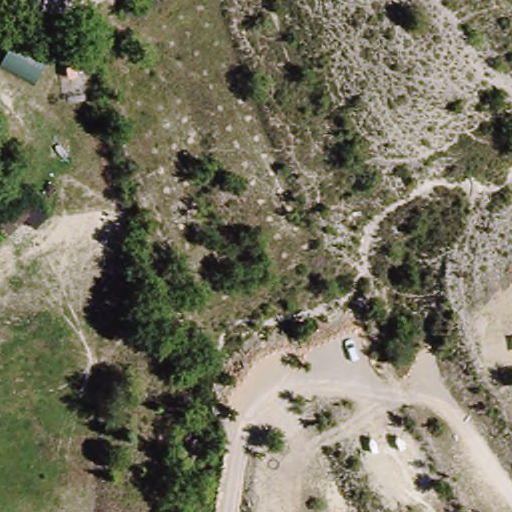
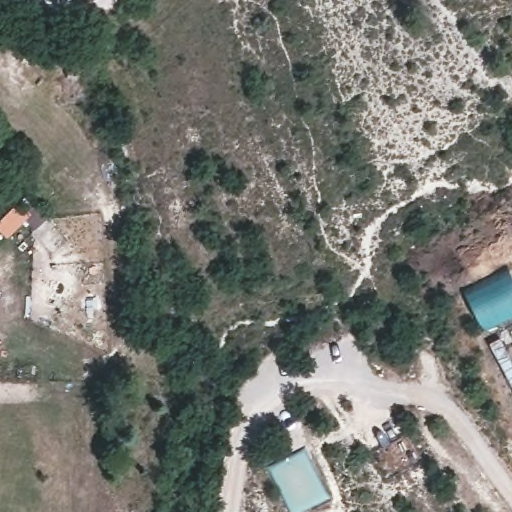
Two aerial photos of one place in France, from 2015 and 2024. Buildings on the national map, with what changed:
unchanged [(22,197),(47,214),(37,226),(27,216),(6,236),(0,231),(0,219),(22,197)]
new [(512,273),(512,315),(483,330),(462,288),(508,265),(512,273)]

